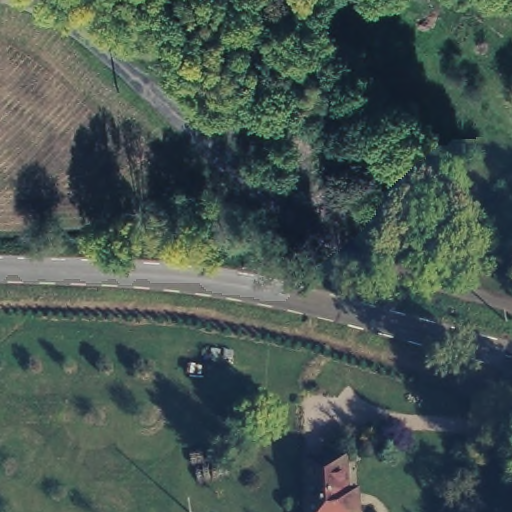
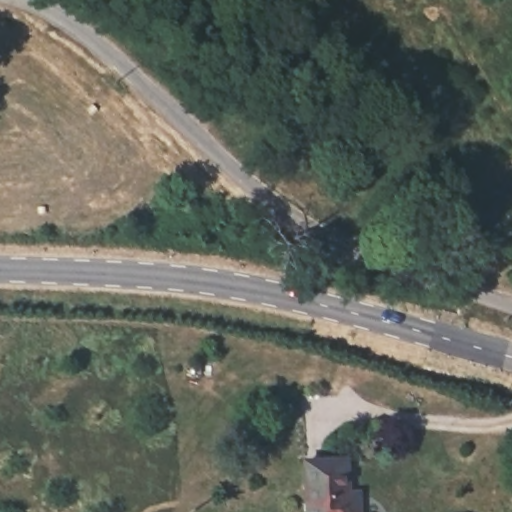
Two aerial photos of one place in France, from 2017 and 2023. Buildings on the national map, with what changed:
unchanged [(352,454),(351,490),(368,489),(368,512),(306,512),(301,456),(352,454)]

